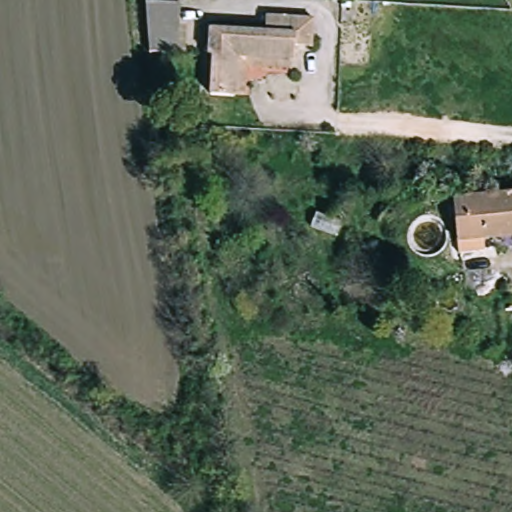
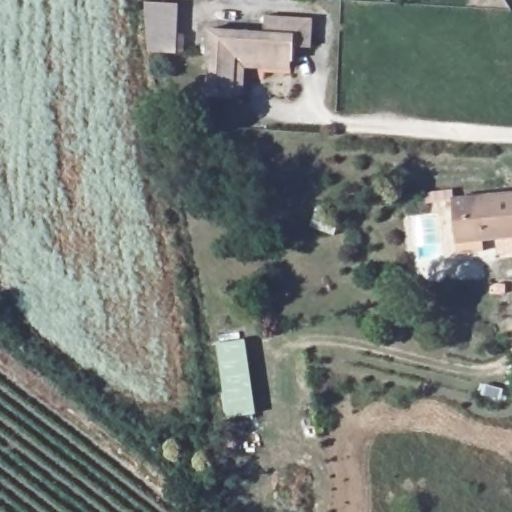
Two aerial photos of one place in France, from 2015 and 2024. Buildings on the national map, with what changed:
unchanged [(175,57),(153,57),(146,9),(175,11),(175,57)]
unchanged [(204,101),(206,33),(258,35),(259,21),(306,23),(305,48),(290,48),(290,62),(227,62),(226,101),(204,101)]
unchanged [(289,75),(242,75),(242,101),(226,101),(227,62),(290,62),(289,75)]
unchanged [(445,206),(419,209),(419,199),(444,196),(445,206)]
unchanged [(512,198),(512,240),(481,243),(482,256),(454,259),(448,204),(512,198)]
new [(218,344),(247,340),(256,414),(226,418),(218,344)]

